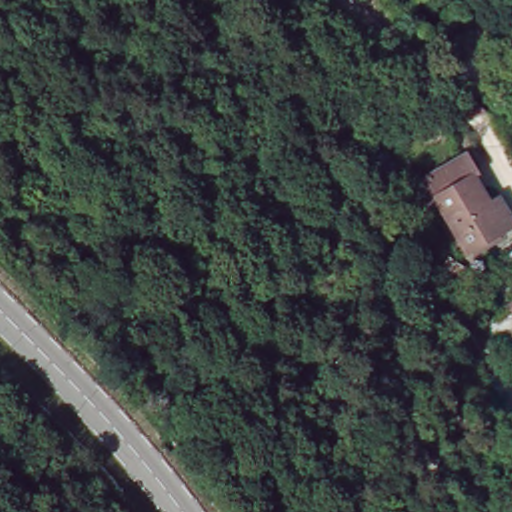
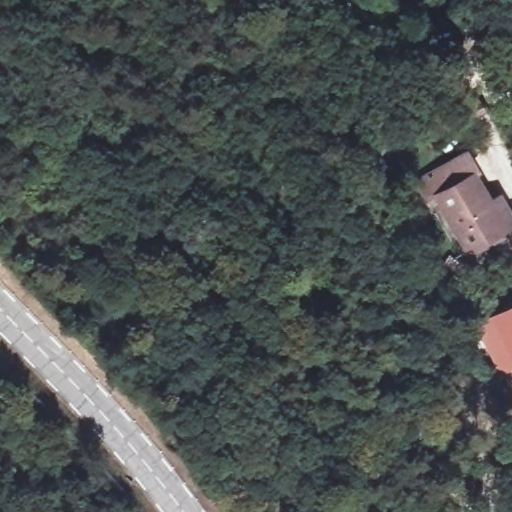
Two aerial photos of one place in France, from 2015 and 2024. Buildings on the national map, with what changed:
unchanged [(486,174),(511,230),(476,246),(450,191),(486,174)]
new [(512,303),(512,369),(500,374),(474,322),(512,303)]

